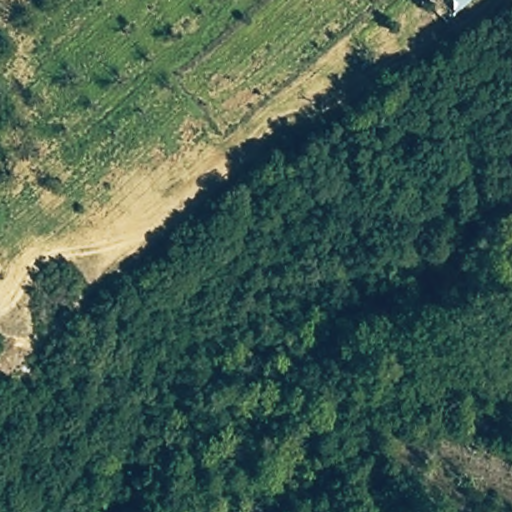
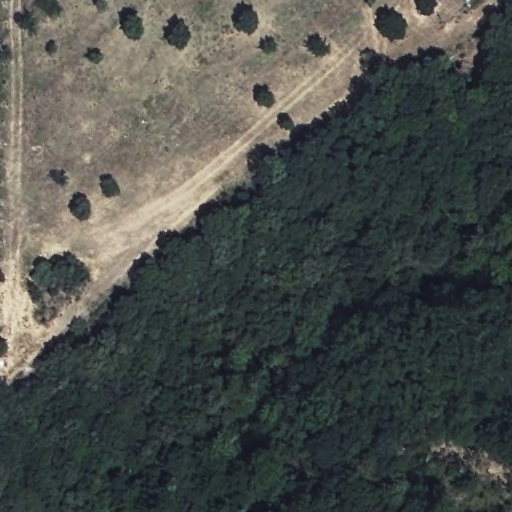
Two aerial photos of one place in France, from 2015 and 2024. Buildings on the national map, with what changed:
unchanged [(436,0),(471,0),(437,29),(421,13),(436,0)]

